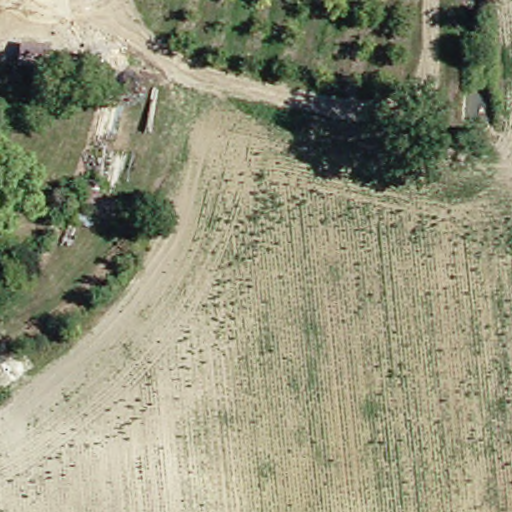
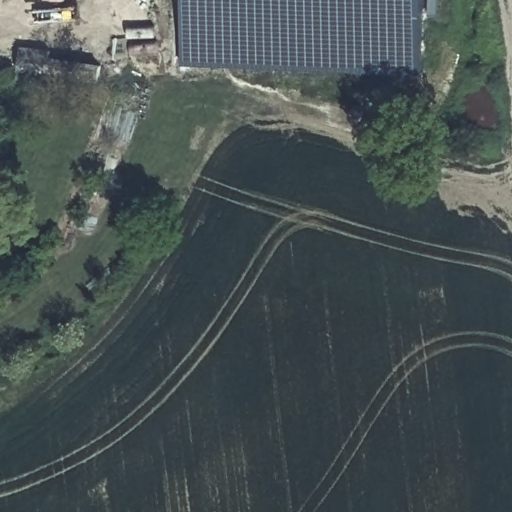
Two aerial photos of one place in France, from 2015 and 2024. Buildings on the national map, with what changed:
new [(411,61),(179,58),(179,0),(411,0),(411,61)]

